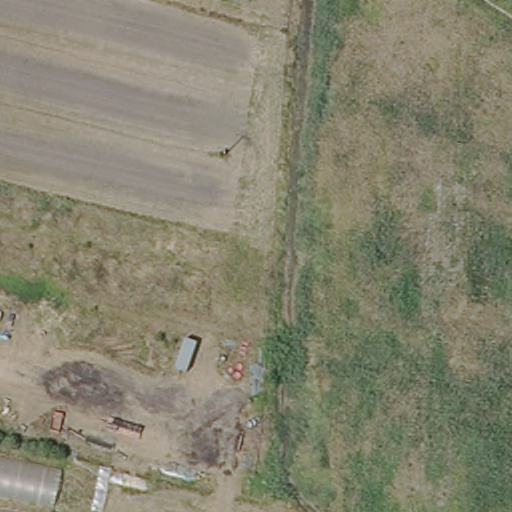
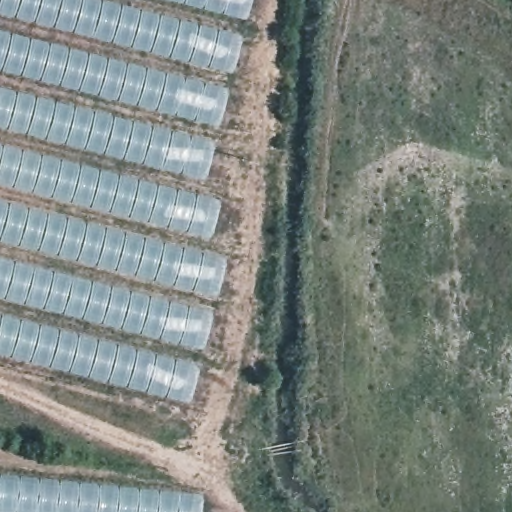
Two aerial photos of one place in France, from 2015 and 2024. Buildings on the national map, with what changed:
new [(242,36),(232,73),(0,15),(0,0),(105,0),(242,36)]
new [(246,20),(170,0),(252,0),(246,20)]
new [(229,88),(218,127),(0,72),(0,29),(229,88)]
new [(215,141),(205,181),(40,140),(0,129),(0,86),(215,141)]
new [(22,148),(221,200),(210,240),(0,186),(0,142),(22,148)]
new [(226,257),(216,297),(101,269),(0,243),(0,199),(226,257)]
new [(213,311),(203,351),(0,299),(0,256),(213,311)]
new [(108,341),(200,366),(189,404),(0,354),(0,313),(108,341)]
demolished [(68,465),(60,512),(0,512),(0,452),(68,465)]
new [(203,494),(201,512),(0,512),(0,473),(203,494)]

